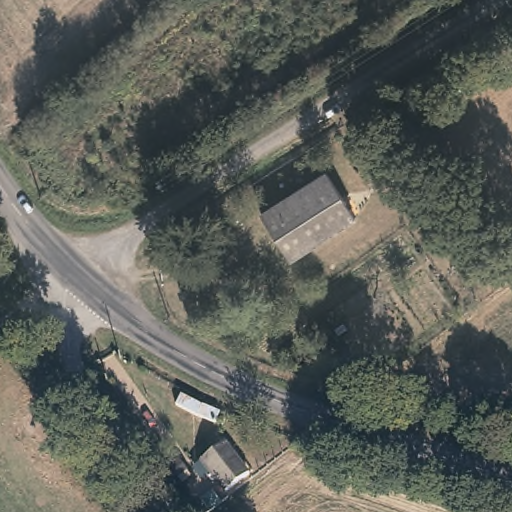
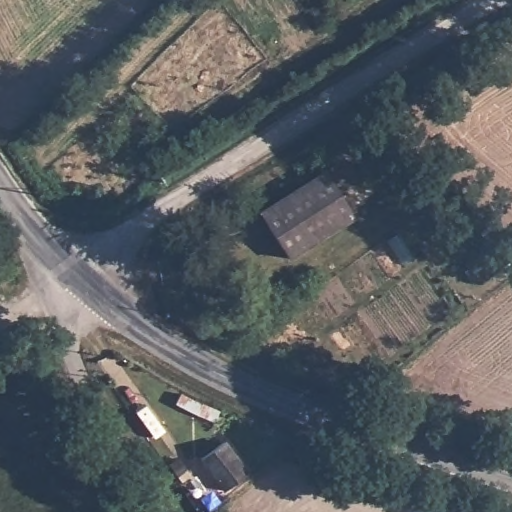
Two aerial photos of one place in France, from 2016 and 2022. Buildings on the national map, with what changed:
unchanged [(357,222),(292,263),(261,217),(326,175),(357,222)]
unchanged [(512,264),(483,287),(470,270),(497,247),(512,264)]
unchanged [(249,475),(226,492),(203,462),(225,445),(249,475)]

